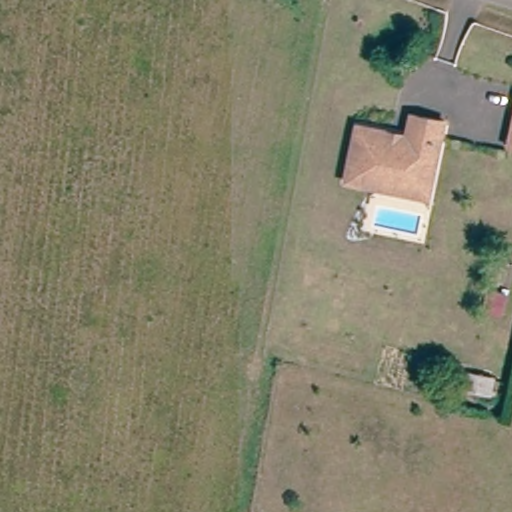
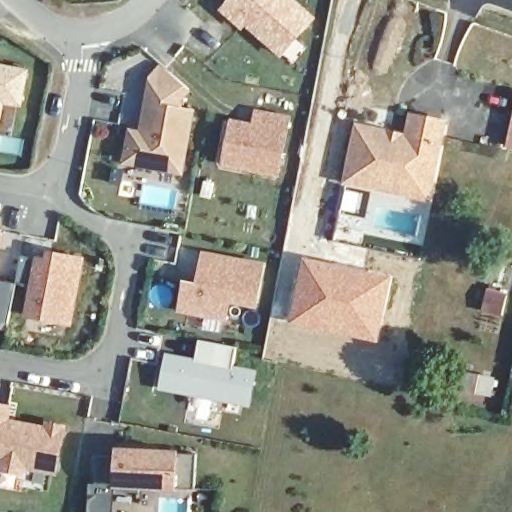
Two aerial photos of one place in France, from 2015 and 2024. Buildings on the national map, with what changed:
new [(248,27),(243,32),(220,10),(229,0),(297,0),(318,18),(284,57),(248,27)]
new [(319,54),(309,98),(289,92),(291,82),(278,79),(284,57),(297,60),(300,49),(319,54)]
new [(131,137),(141,140),(143,132),(153,77),(163,65),(184,82),(180,108),(194,111),(183,171),(126,161),(131,137)]
new [(21,110),(3,107),(0,119),(0,72),(27,77),(21,110)]
unchanged [(512,103),(512,149),(504,147),(512,103)]
new [(259,132),(262,117),(291,123),(288,138),(280,179),(227,169),(235,127),(259,132)]
new [(133,118),(144,120),(143,127),(132,126),(133,118)]
unchanged [(418,199),(402,196),(370,190),(340,185),(352,128),(403,139),(408,120),(433,125),(442,127),(432,173),(427,200),(418,199)]
new [(0,245),(0,234),(2,234),(0,245)]
new [(301,255),(392,275),(379,342),(285,323),(301,255)]
new [(23,260),(40,263),(39,269),(48,271),(50,257),(84,263),(71,327),(29,320),(34,291),(18,287),(23,260)]
new [(191,287),(211,290),(213,279),(206,277),(209,260),(268,271),(261,309),(234,304),(230,323),(185,315),(191,287)]
new [(486,287),(508,292),(501,317),(480,312),(486,287)]
new [(171,361),(199,367),(203,345),(240,352),(236,373),(258,377),(253,406),(166,390),(171,361)]
new [(465,371),(478,373),(474,393),(487,397),(484,407),(458,401),(465,371)]
new [(9,411),(16,412),(49,418),(50,414),(66,417),(57,462),(30,457),(22,462),(6,459),(0,452),(0,395),(11,397),(9,411)]
new [(93,454),(113,455),(114,448),(192,453),(191,488),(136,486),(135,491),(111,489),(112,485),(91,483),(93,454)]

